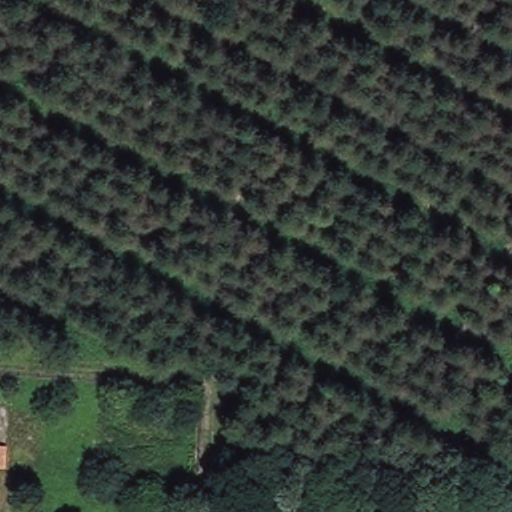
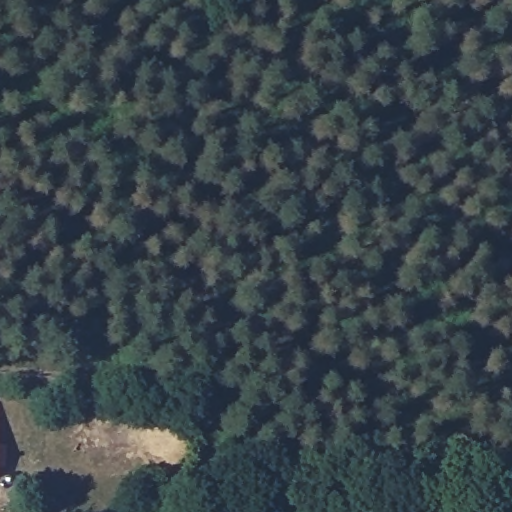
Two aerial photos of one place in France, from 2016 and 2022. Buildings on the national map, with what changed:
unchanged [(14,446),(13,468),(0,468),(0,445),(14,446)]

